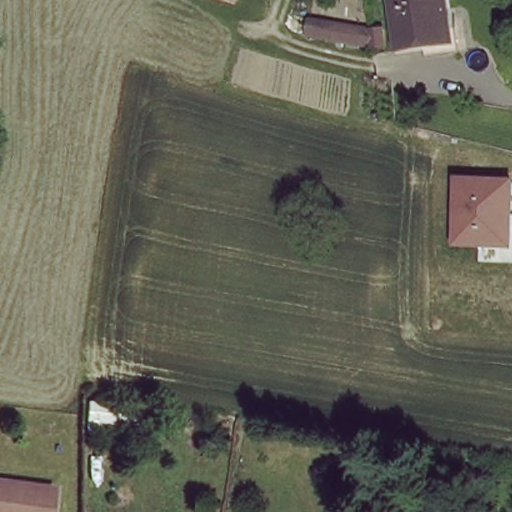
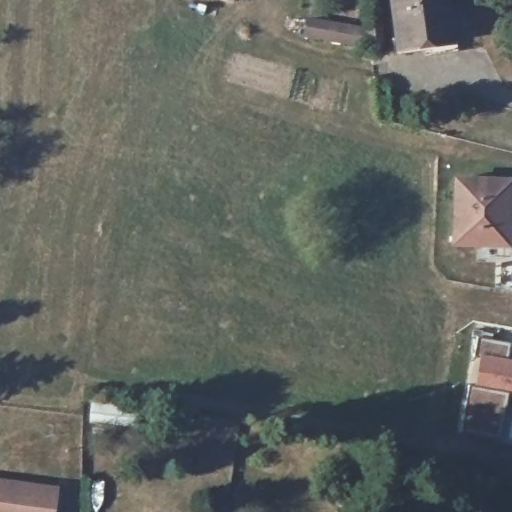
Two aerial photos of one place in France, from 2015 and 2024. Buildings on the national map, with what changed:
unchanged [(217,0),(234,0),(232,5),(217,0)]
unchanged [(423,55),(419,40),(396,42),(391,0),(445,0),(454,50),(423,55)]
unchanged [(306,15),(366,25),(375,25),(378,48),(365,49),(302,39),(306,15)]
unchanged [(512,220),(511,247),(452,246),(453,177),(512,178),(512,220)]
new [(461,430),(469,386),(474,387),(479,354),(474,353),(477,338),(508,343),(506,359),(512,360),(512,396),(505,395),(499,437),(461,430)]
unchanged [(143,430),(85,425),(82,402),(141,410),(143,430)]
unchanged [(54,512),(0,512),(0,484),(57,500),(54,512)]

